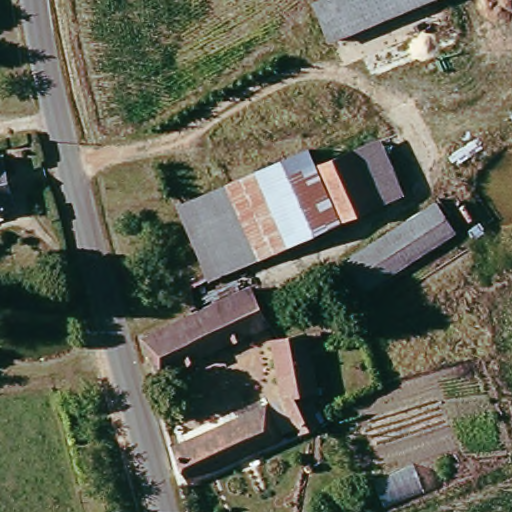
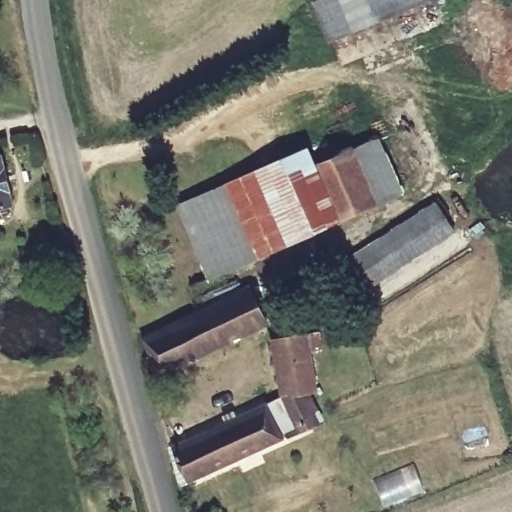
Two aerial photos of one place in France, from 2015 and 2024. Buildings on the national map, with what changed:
unchanged [(332,44),(315,6),(328,0),(429,0),(332,44)]
unchanged [(317,166),(376,137),(398,184),(338,212),(317,166)]
unchanged [(179,206),(307,146),(317,166),(338,212),(210,272),(179,206)]
unchanged [(9,206),(0,208),(0,167),(9,206)]
unchanged [(452,230),(401,262),(365,287),(345,258),(434,200),(443,215),(452,230)]
unchanged [(251,293),(266,326),(151,376),(141,338),(251,293)]
unchanged [(278,398),(267,345),(308,336),(312,355),(298,358),(306,396),(298,397),(306,427),(290,432),(278,398)]
unchanged [(186,486),(169,452),(263,407),(279,439),(186,486)]

